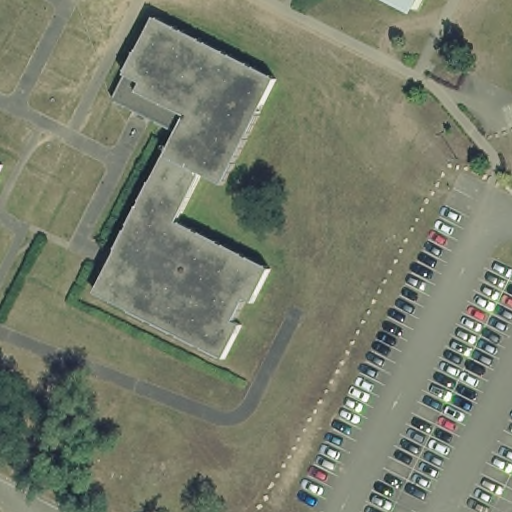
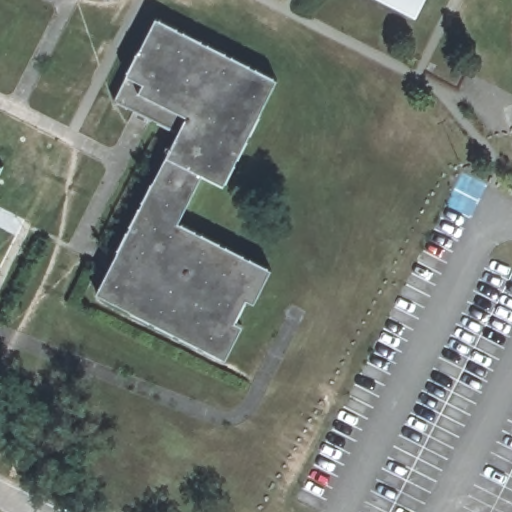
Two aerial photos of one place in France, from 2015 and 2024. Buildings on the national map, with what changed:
unchanged [(418,12),(395,0),(425,0),(418,12)]
unchanged [(225,181),(206,172),(182,220),(270,266),(226,353),(98,291),(181,130),(114,101),(157,17),(277,77),(225,181)]
unchanged [(0,173),(0,164),(3,166),(0,173)]

